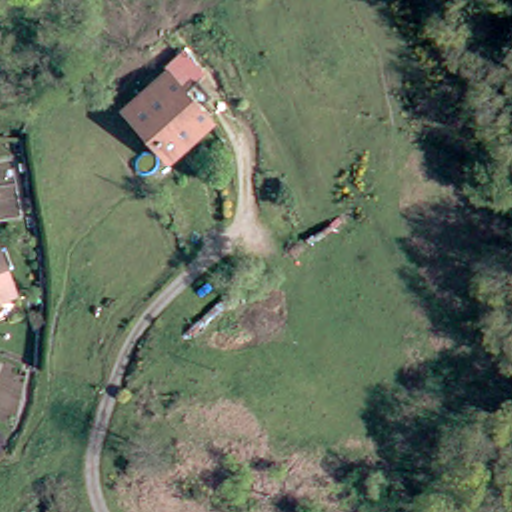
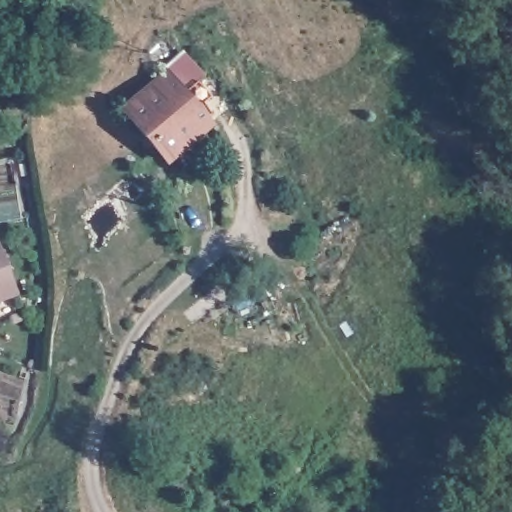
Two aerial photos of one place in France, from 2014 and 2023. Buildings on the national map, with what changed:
unchanged [(210,120),(166,160),(118,109),(162,67),(210,120)]
unchanged [(0,261),(12,290),(0,295),(0,261)]

